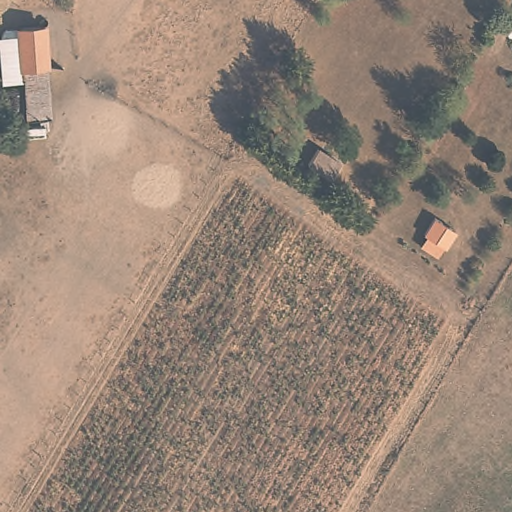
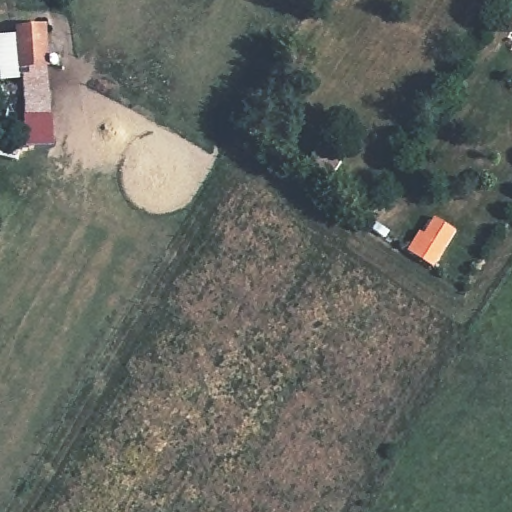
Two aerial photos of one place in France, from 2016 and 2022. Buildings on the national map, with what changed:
unchanged [(42,4),(43,94),(21,94),(20,4),(42,4)]
unchanged [(339,168),(326,183),(303,164),(314,150),(339,168)]
unchanged [(454,237),(444,253),(421,238),(432,222),(454,237)]

